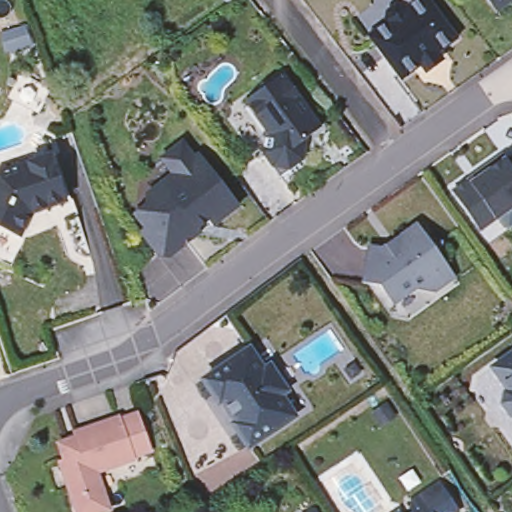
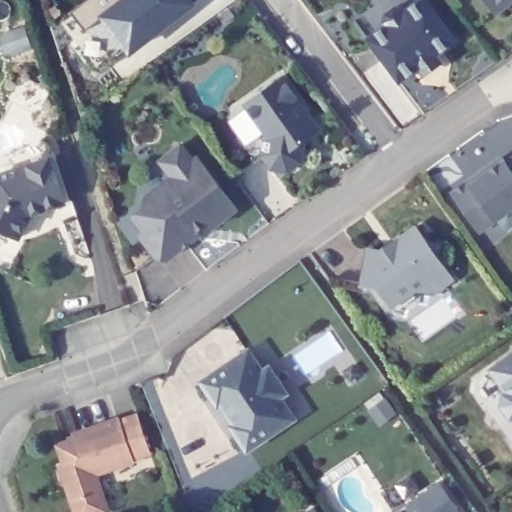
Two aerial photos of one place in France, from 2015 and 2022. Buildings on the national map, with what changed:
new [(88,0),(192,0),(196,3),(128,57),(99,21),(84,33),(71,13),(88,0)]
unchanged [(386,25),(384,21),(386,14),(395,7),(403,8),(405,11),(419,0),(426,0),(457,41),(437,56),(435,54),(419,66),(420,68),(400,83),(367,39),(386,25)]
unchanged [(492,3),(490,0),(495,0),(492,3)]
unchanged [(306,140),(303,161),(279,178),(263,155),(266,133),(244,103),(281,76),(317,126),(321,130),(306,140)]
unchanged [(174,258),(163,257),(144,234),(157,225),(158,216),(151,207),(152,196),(178,177),(166,161),(186,144),(199,160),(203,157),(215,173),(228,190),(241,207),(242,209),(217,228),(215,226),(206,234),(174,258)]
unchanged [(507,158),(512,154),(512,203),(479,227),(452,188),(469,176),(484,166),(503,152),(507,158)]
unchanged [(31,213),(19,238),(0,228),(0,174),(17,169),(51,158),(65,202),(31,213)]
unchanged [(369,245),(390,248),(404,239),(400,234),(417,222),(428,238),(439,240),(438,252),(458,280),(408,316),(391,313),(393,301),(380,283),(363,280),(369,245)]
unchanged [(511,406),(503,395),(504,385),(509,381),(492,360),(512,345),(512,406),(511,406)]
unchanged [(248,350),(260,369),(274,375),(278,381),(279,389),(279,394),(294,417),(246,447),(232,424),(234,423),(221,401),(217,403),(202,380),(248,350)]
unchanged [(135,456),(136,458),(97,471),(109,509),(99,512),(78,512),(60,461),(65,459),(63,448),(69,438),(78,435),(76,431),(120,417),(121,420),(139,414),(152,450),(135,456)]
unchanged [(447,483),(464,512),(419,512),(414,505),(447,483)]

